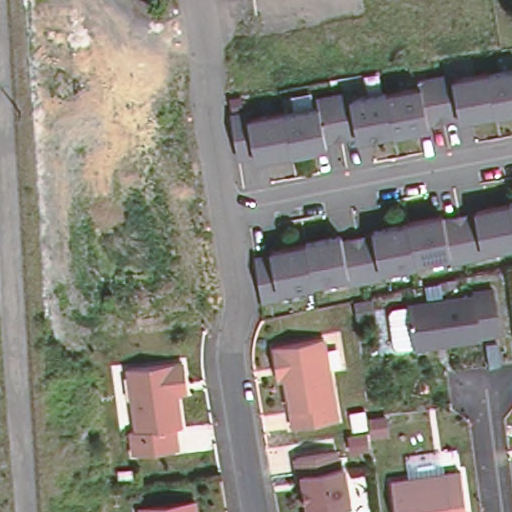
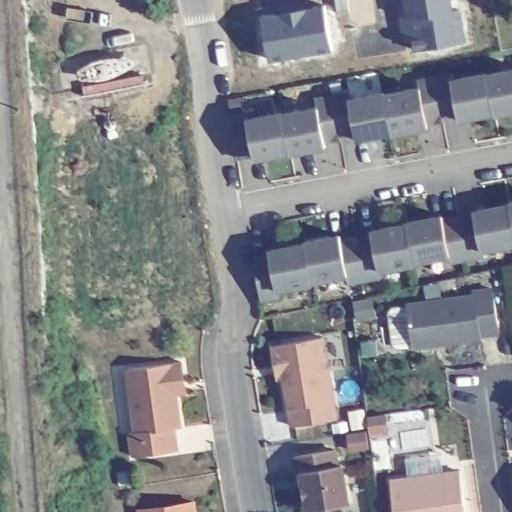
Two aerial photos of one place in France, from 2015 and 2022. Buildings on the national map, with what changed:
new [(451,17),(460,16),(465,44),(412,53),(404,0),(449,0),(451,17)]
new [(322,10),(330,53),(269,64),(260,20),(322,10)]
unchanged [(492,110),(488,93),(484,72),(512,67),(512,107),(492,111),(492,110)]
unchanged [(448,71),(449,77),(484,71),(484,72),(488,93),(492,110),(457,116),(456,115),(440,117),(431,75),(448,71)]
unchanged [(440,117),(425,120),(425,124),(390,131),(390,129),(389,125),(382,91),(416,85),(415,78),(431,75),(440,117)]
unchanged [(345,89),(347,96),(381,90),(382,91),(389,125),(390,129),(354,136),(354,133),(337,135),(335,122),(329,93),(345,89)]
unchanged [(314,104),(312,96),(329,93),(335,122),(337,135),(322,138),(322,143),(287,150),(287,148),(279,111),(314,104)]
unchanged [(242,109),(244,116),(279,109),(279,111),(287,148),(252,155),(251,151),(234,155),(226,112),(242,109)]
unchanged [(509,203),(508,201),(512,200),(512,220),(510,211),(509,203)]
unchanged [(473,210),(509,203),(510,211),(512,220),(512,243),(482,248),(483,254),(466,257),(465,252),(457,215),(473,211),(473,210)]
unchanged [(405,221),(441,214),(442,218),(457,215),(465,252),(466,257),(450,261),(448,254),(414,260),(405,222),(405,221)]
unchanged [(364,275),(355,235),(371,233),(370,230),(405,222),(414,260),(414,261),(380,268),(381,275),(364,278),(364,275)]
unchanged [(303,240),(339,233),(340,238),(355,235),(364,275),(364,278),(347,282),(345,273),(311,279),(309,269),(304,242),(303,240)]
unchanged [(309,269),(311,279),(312,280),(279,287),(280,294),(262,297),(254,255),(270,251),(269,248),(304,242),(309,269)]
unchanged [(497,331),(479,334),(480,338),(444,342),(444,338),(432,340),(433,344),(412,347),(407,304),(472,295),(472,292),(491,289),(497,331)]
unchanged [(290,423),(282,377),(275,378),(274,364),(270,344),(319,335),(334,415),(290,423)]
unchanged [(181,387),(171,388),(177,432),(170,433),(174,456),(130,461),(127,438),(132,438),(124,375),(179,367),(181,387)]
unchanged [(295,474),(292,457),(332,450),(335,466),(341,465),(347,503),(306,510),(302,487),(297,488),(295,474)]
unchanged [(463,477),(468,512),(398,512),(395,486),(463,477)]
unchanged [(192,503),(193,512),(137,512),(192,503)]

